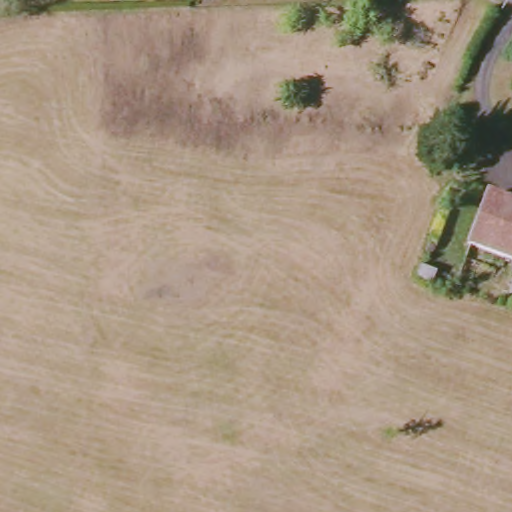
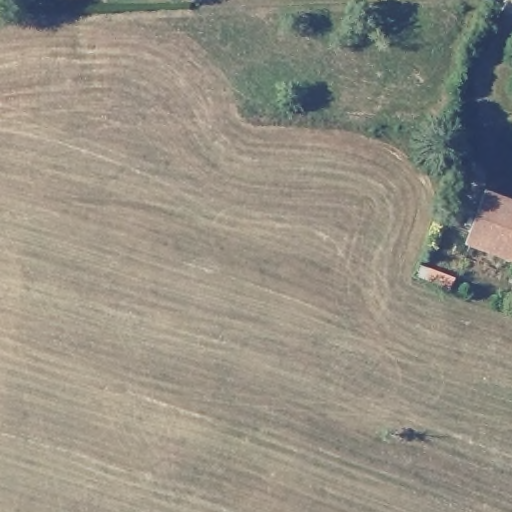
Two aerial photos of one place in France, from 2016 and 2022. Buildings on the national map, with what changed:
unchanged [(72,0),(49,1),(49,0),(72,0)]
unchanged [(486,197),(512,207),(512,260),(469,244),(486,197)]
unchanged [(430,270),(425,280),(415,277),(420,266),(430,270)]

